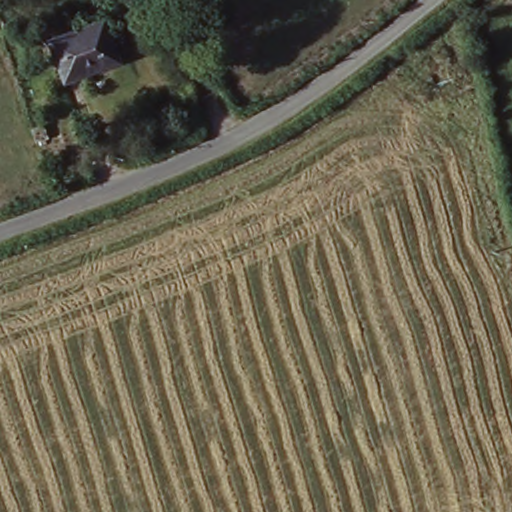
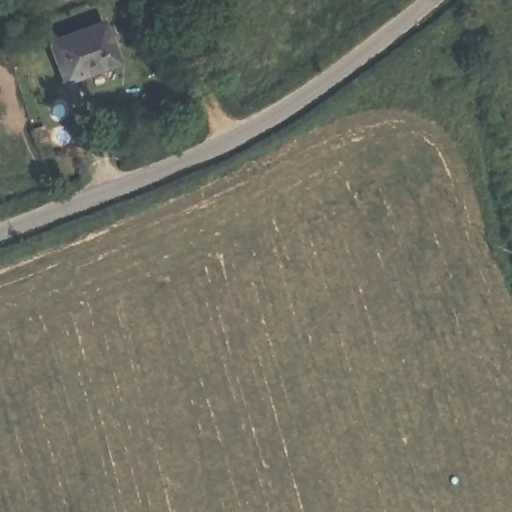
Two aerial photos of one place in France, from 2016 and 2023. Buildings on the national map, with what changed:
unchanged [(122,64),(64,85),(47,44),(104,22),(122,64)]

